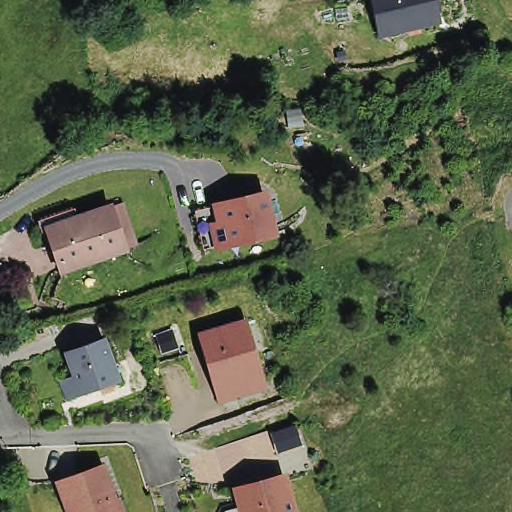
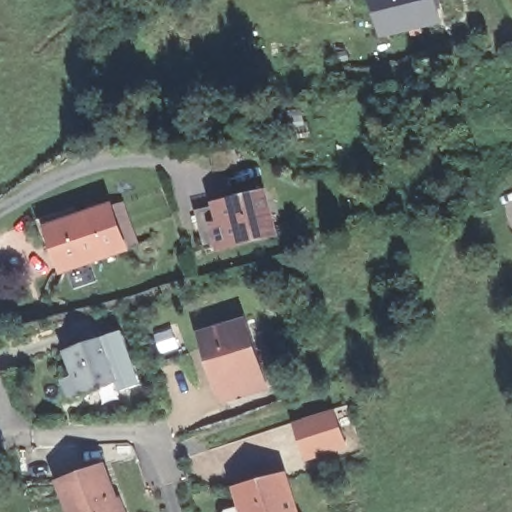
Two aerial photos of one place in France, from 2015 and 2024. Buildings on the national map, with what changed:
unchanged [(372,0),(428,0),(433,22),(389,31),(379,34),(375,15),(372,0)]
unchanged [(269,187),(282,232),(219,247),(207,205),(269,187)]
unchanged [(40,227),(72,217),(75,227),(108,216),(109,217),(119,215),(133,256),(122,260),(57,281),(40,227)]
unchanged [(247,316),(267,388),(220,401),(196,332),(247,316)]
unchanged [(104,337),(117,380),(75,390),(62,350),(104,337)]
new [(333,410),(344,442),(306,455),(295,422),(333,410)]
unchanged [(295,424),(302,442),(277,451),(272,432),(295,424)]
unchanged [(101,461),(121,512),(69,512),(57,477),(101,461)]
unchanged [(229,489),(274,477),(283,512),(235,512),(229,489)]

